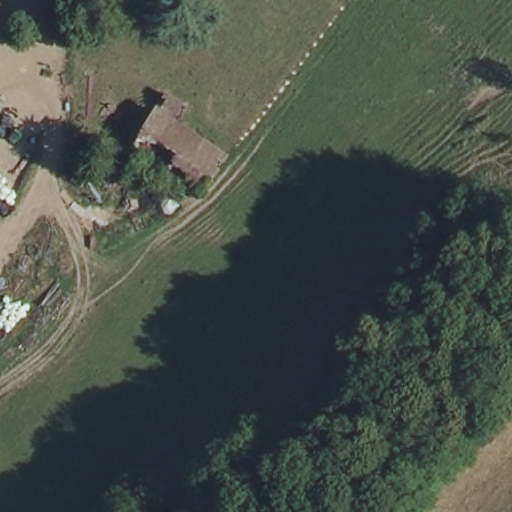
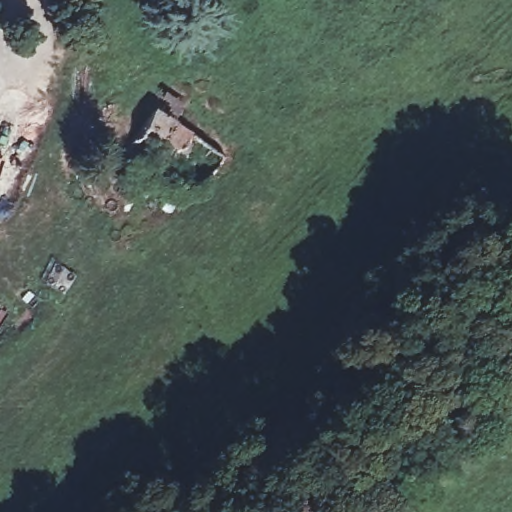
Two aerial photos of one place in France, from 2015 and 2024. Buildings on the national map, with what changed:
unchanged [(202,188),(156,157),(137,185),(115,167),(152,114),(168,91),(184,107),(172,125),(225,154),(202,188)]

